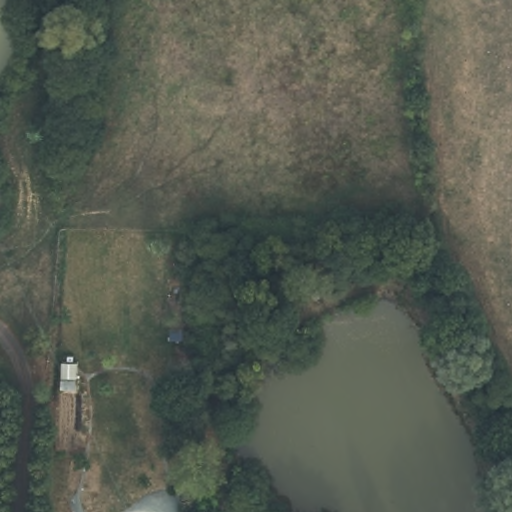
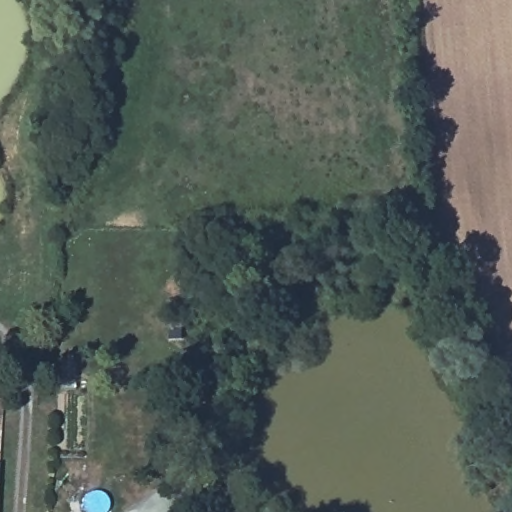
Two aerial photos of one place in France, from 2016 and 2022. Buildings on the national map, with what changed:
unchanged [(2,487),(1,511),(0,512),(0,487),(2,487)]

